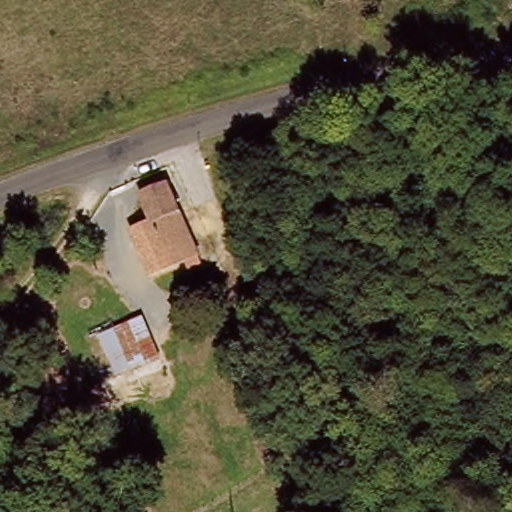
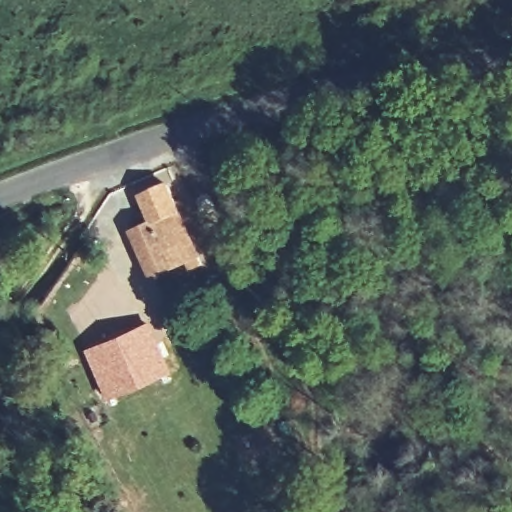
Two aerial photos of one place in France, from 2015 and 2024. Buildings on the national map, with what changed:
unchanged [(197,249),(155,274),(134,231),(148,221),(137,197),(162,182),(197,249)]
demolished [(142,319),(170,378),(145,390),(143,385),(125,394),(99,340),(142,319)]
new [(152,320),(169,372),(103,399),(82,348),(152,320)]

